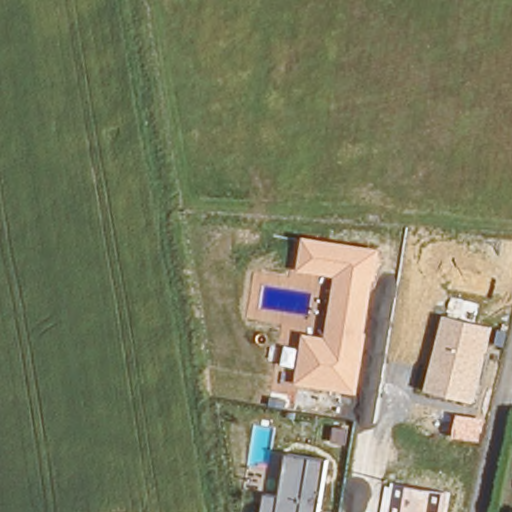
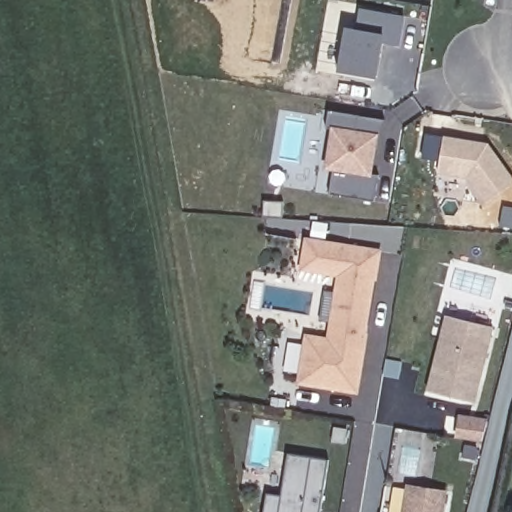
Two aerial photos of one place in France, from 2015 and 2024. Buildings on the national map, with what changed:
new [(399,44),(381,41),(376,78),(338,72),(346,27),(355,29),(358,8),(404,16),(399,44)]
new [(328,195),(333,170),(327,168),(332,129),(326,128),(329,110),(385,119),(380,152),(374,151),(371,174),(379,176),(375,202),(328,195)]
new [(467,177),(438,172),(444,137),(487,145),(512,179),(512,185),(487,203),(467,177)]
unchanged [(378,282),(374,280),(367,332),(370,333),(359,394),(297,385),(300,368),(285,366),(288,347),(303,349),(307,333),(325,337),(335,277),(302,272),(308,239),(383,250),(378,282)]
unchanged [(476,402),(427,390),(445,316),(496,326),(476,402)]
unchanged [(265,512),(268,493),(281,496),(289,454),(330,461),(321,512),(265,512)]
unchanged [(402,512),(408,485),(448,491),(444,512),(402,512)]

